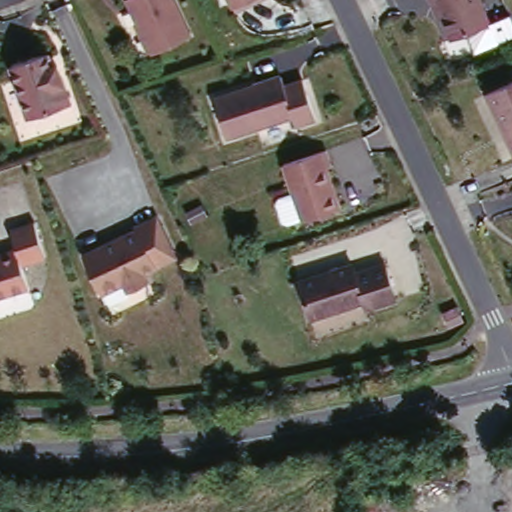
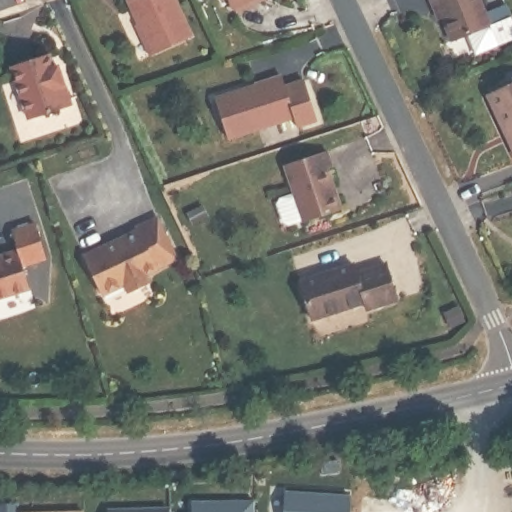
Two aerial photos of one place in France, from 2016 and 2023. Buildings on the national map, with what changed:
unchanged [(126,0),(174,0),(192,35),(151,54),(124,1),(126,0)]
unchanged [(230,2),(229,0),(235,0),(230,2)]
unchanged [(492,24),(452,39),(439,3),(436,5),(434,0),(482,0),(492,24)]
unchanged [(47,57),(54,77),(58,77),(69,109),(29,122),(11,69),(47,57)]
unchanged [(214,100),(279,80),(283,88),(302,82),(315,124),(294,130),(292,122),(226,142),(214,100)]
unchanged [(512,84),(512,149),(489,95),(512,84)]
unchanged [(281,206),(285,197),(297,194),(287,163),(329,150),(334,167),(330,170),(344,209),(305,221),(305,220),(288,225),(281,206)]
unchanged [(174,260),(143,277),(146,283),(128,292),(124,285),(103,296),(84,256),(134,232),(133,229),(154,219),(174,260)]
unchanged [(8,229),(33,222),(44,260),(23,266),(29,287),(0,297),(0,257),(15,252),(8,229)]
unchanged [(299,283),(354,266),(357,277),(387,267),(399,303),(367,314),(364,307),(313,322),(299,283)]
new [(351,512),(287,512),(289,488),(352,495),(351,512)]
new [(261,512),(193,512),(193,497),(261,495),(261,512)]

